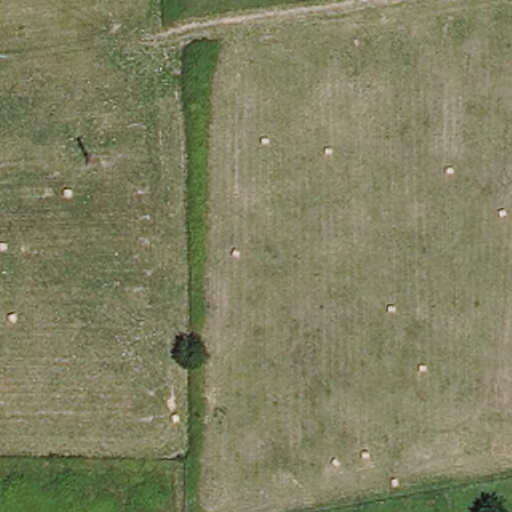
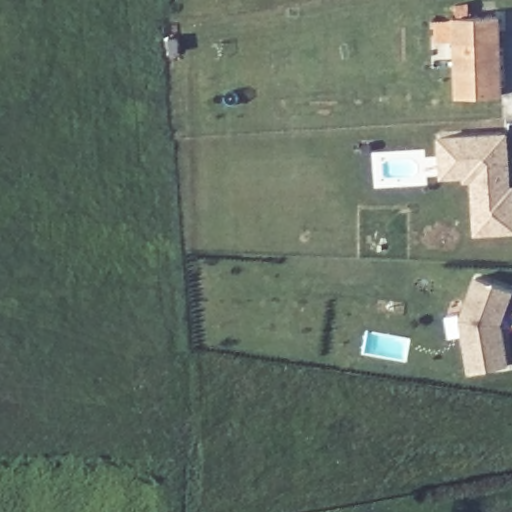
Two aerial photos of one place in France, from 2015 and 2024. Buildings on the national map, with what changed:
new [(501,15),(503,94),(460,95),(458,16),(501,15)]
new [(483,234),(479,181),(472,181),(472,176),(449,178),(448,158),(447,139),(512,136),(512,233),(483,234)]
new [(501,322),(507,365),(469,370),(462,317),(479,276),(512,290),(512,296),(501,322)]

